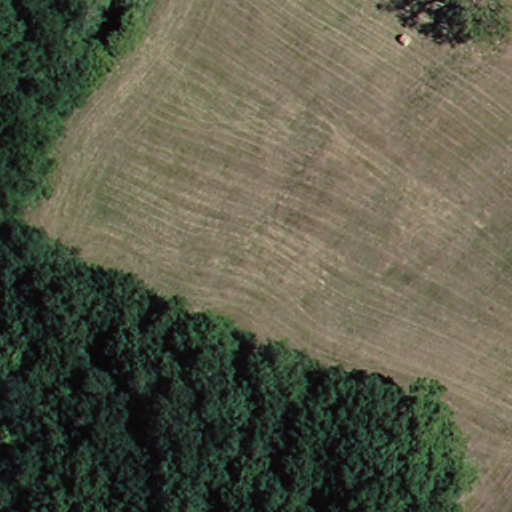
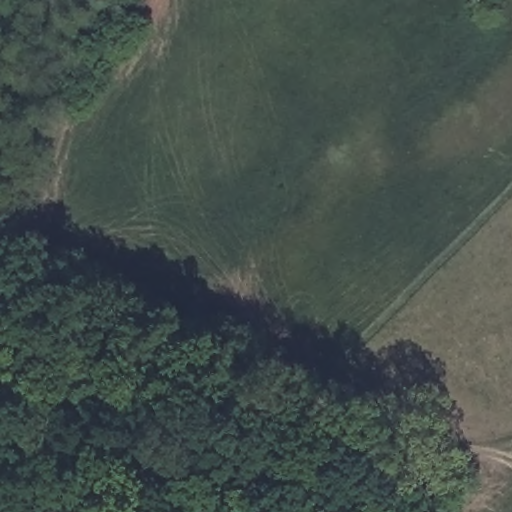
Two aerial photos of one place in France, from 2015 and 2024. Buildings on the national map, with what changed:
[]

